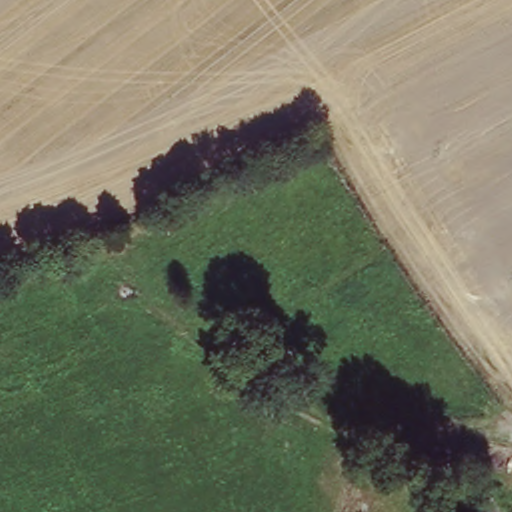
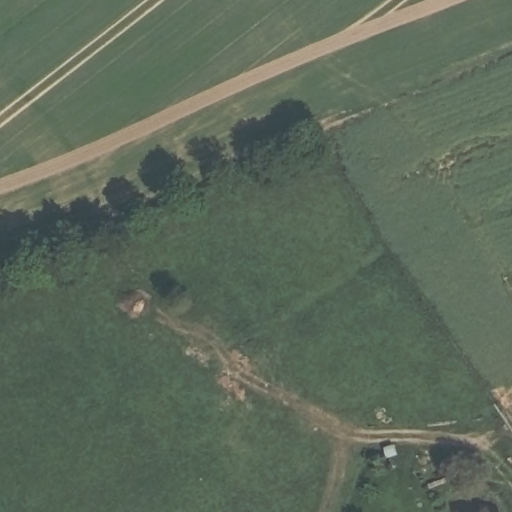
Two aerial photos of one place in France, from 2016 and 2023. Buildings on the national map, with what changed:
[]

